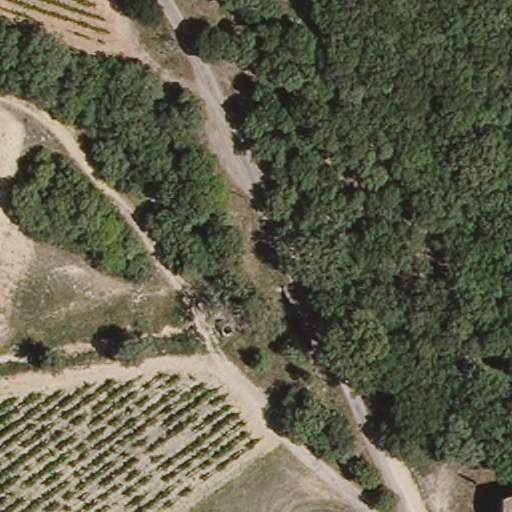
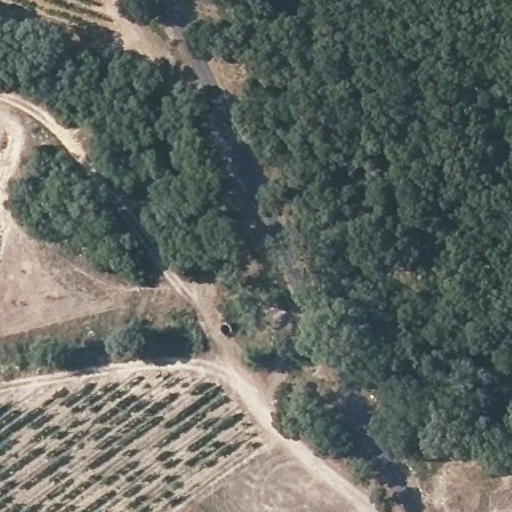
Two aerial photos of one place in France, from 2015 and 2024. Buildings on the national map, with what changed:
unchanged [(468,512),(462,486),(512,477),(512,512),(468,512)]

